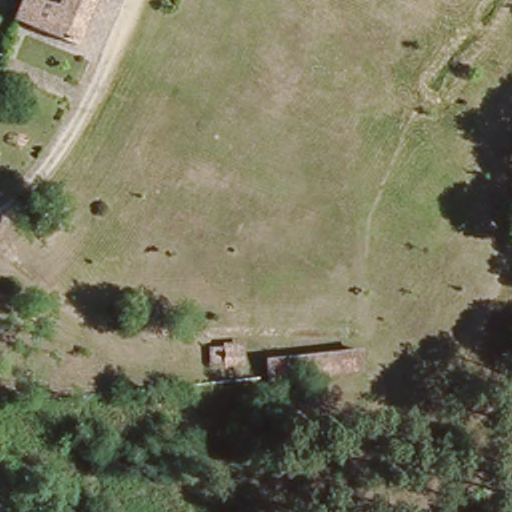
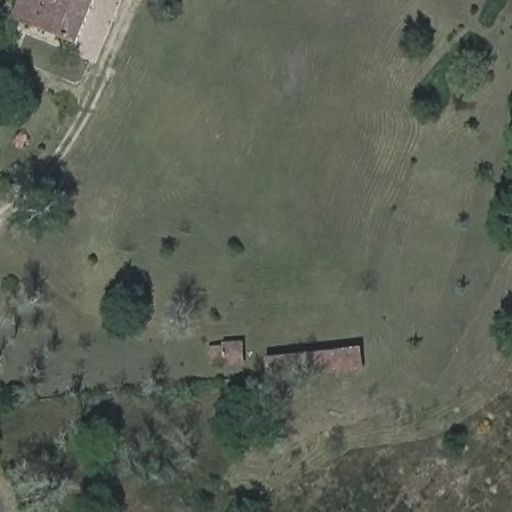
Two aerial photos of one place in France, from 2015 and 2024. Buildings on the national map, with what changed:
unchanged [(12,19),(20,0),(34,0),(24,25),(12,19)]
unchanged [(24,25),(34,0),(97,0),(80,46),(24,25)]
unchanged [(244,342),(245,360),(211,361),(211,343),(244,342)]
unchanged [(366,351),(366,372),(271,378),(271,353),(366,351)]

